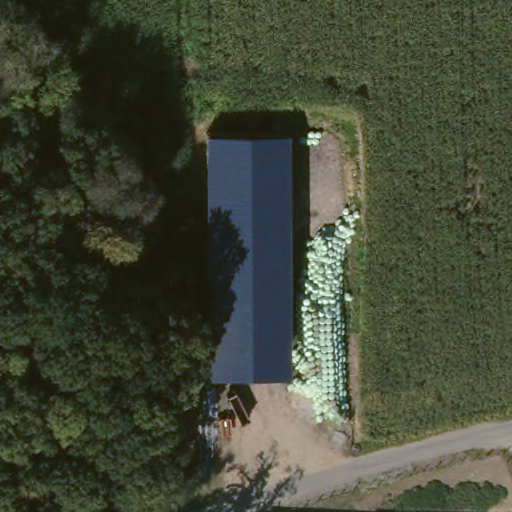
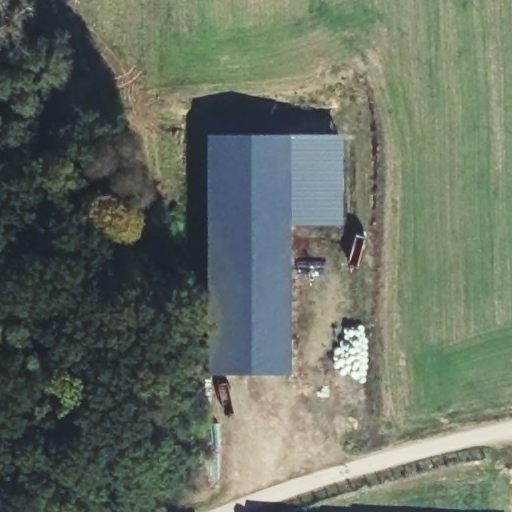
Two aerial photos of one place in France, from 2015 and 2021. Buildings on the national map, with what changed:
unchanged [(291,376),(206,376),(207,136),(291,134),(291,376)]
new [(344,135),(342,225),(291,225),(291,134),(344,135)]

